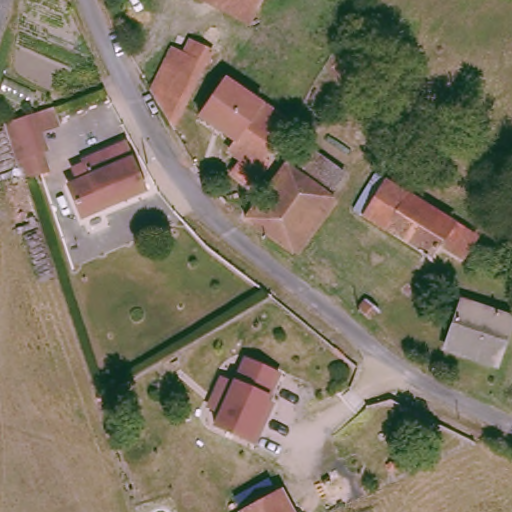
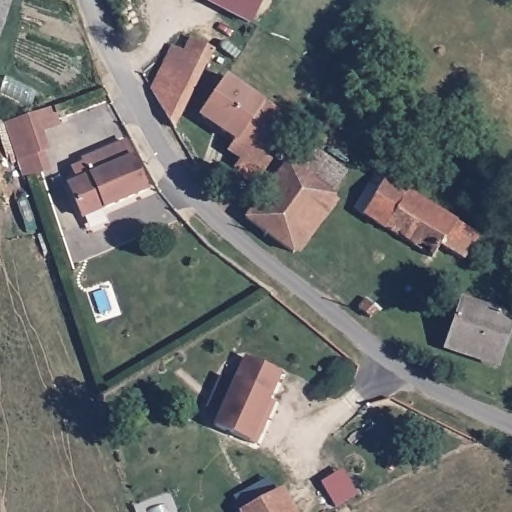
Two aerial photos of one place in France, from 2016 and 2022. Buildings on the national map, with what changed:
unchanged [(0,34),(0,0),(11,0),(0,34)]
unchanged [(258,22),(216,0),(270,0),(258,22)]
unchanged [(170,105),(162,91),(183,47),(194,53),(201,41),(222,51),(184,129),(170,105)]
unchanged [(247,170),(254,160),(240,150),(246,142),(211,117),(237,79),(301,124),(276,160),(281,163),(266,186),(247,170)]
unchanged [(29,178),(23,159),(11,124),(58,108),(64,126),(46,132),(52,150),(41,153),(48,172),(29,178)]
unchanged [(312,151),(345,174),(330,195),(325,191),(298,171),(312,151)]
unchanged [(95,185),(89,171),(131,153),(151,201),(88,228),(74,195),(95,185)]
unchanged [(335,198),(294,254),(246,219),(287,163),(298,171),(325,191),(330,195),(335,198)]
unchanged [(467,261),(445,247),(438,259),(360,211),(382,174),(482,238),(467,261)]
unchanged [(370,319),(360,309),(367,300),(378,310),(370,319)]
unchanged [(446,349),(463,302),(512,318),(512,321),(497,366),(446,349)]
unchanged [(273,421),(260,449),(220,431),(226,418),(215,413),(226,385),(239,390),(250,364),(285,380),(273,407),(278,410),(273,421)]
unchanged [(249,512),(248,508),(265,499),(270,508),(288,499),(295,512),(249,512)]

